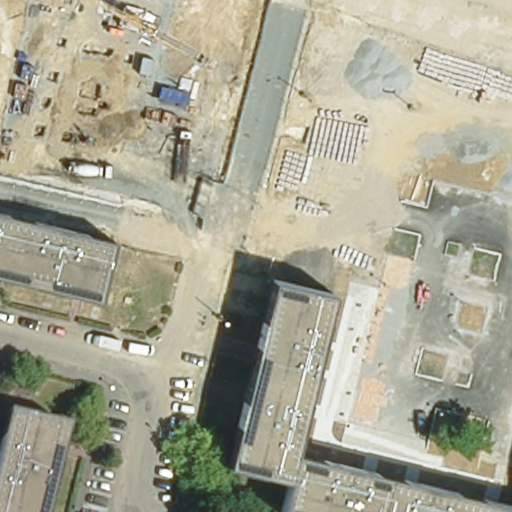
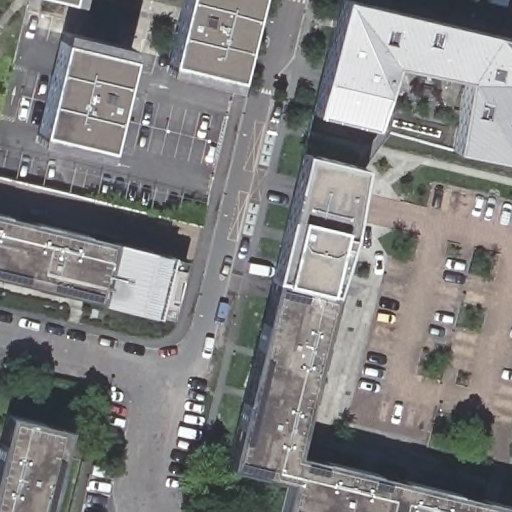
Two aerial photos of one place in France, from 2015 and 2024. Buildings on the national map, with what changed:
new [(79,4),(61,0),(79,0),(79,4)]
new [(235,88),(167,72),(184,0),(257,0),(235,88)]
new [(340,0),(355,0),(492,34),(512,38),(512,145),(507,161),(451,147),(464,79),(392,64),(372,128),(312,113),(340,0)]
new [(105,157),(37,141),(64,30),(132,46),(105,157)]
new [(372,128),(392,64),(464,79),(451,147),(372,128)]
new [(282,289),(272,287),(304,154),(361,167),(352,230),(333,300),(282,289)]
unchanged [(114,245),(101,299),(0,275),(0,217),(114,245)]
new [(101,299),(114,245),(170,258),(186,261),(174,316),(157,312),(101,299)]
unchanged [(227,470),(272,287),(282,289),(237,472),(227,470)]
unchanged [(289,485),(237,472),(282,289),(333,300),(297,454),(512,505),(512,512),(303,512),(284,507),(289,485)]
unchanged [(0,512),(0,454),(11,409),(67,423),(45,512),(0,512)]
unchanged [(52,512),(45,512),(67,423),(74,425),(52,512)]
unchanged [(303,512),(283,512),(284,507),(303,512)]

